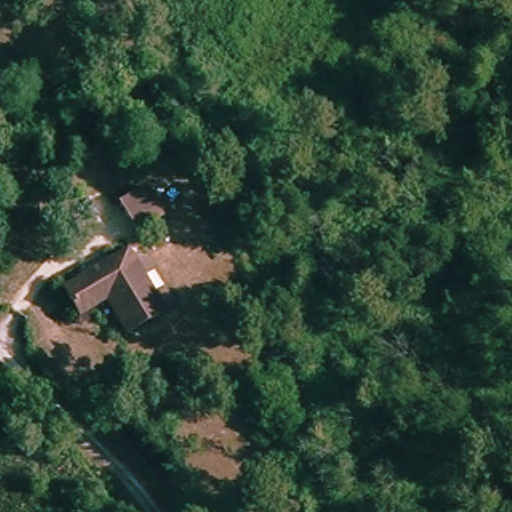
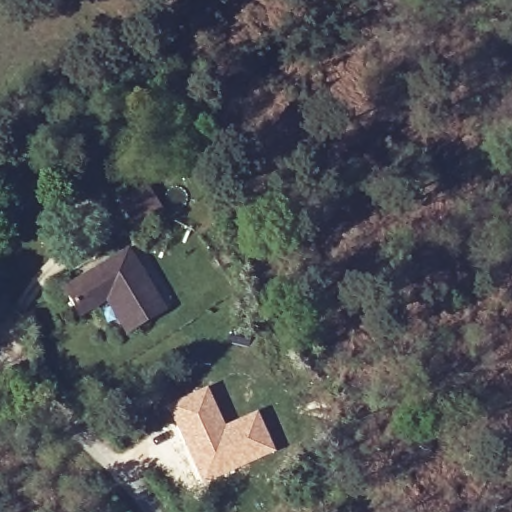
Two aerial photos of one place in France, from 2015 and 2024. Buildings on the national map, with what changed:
unchanged [(127,204),(151,189),(167,216),(142,230),(127,204)]
unchanged [(113,300),(87,317),(71,292),(133,253),(169,310),(134,332),(113,300)]
new [(167,407),(205,390),(223,428),(256,413),(273,453),(202,485),(167,407)]

